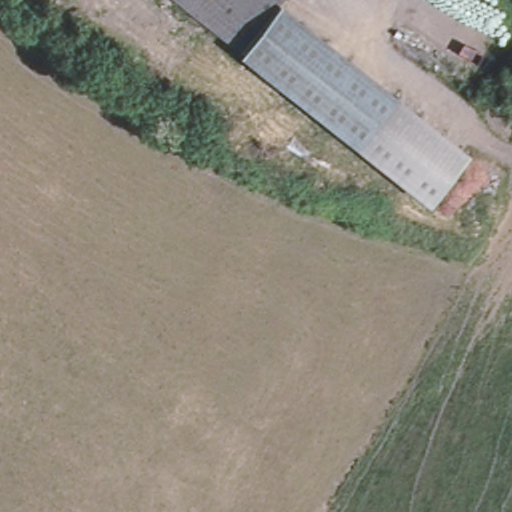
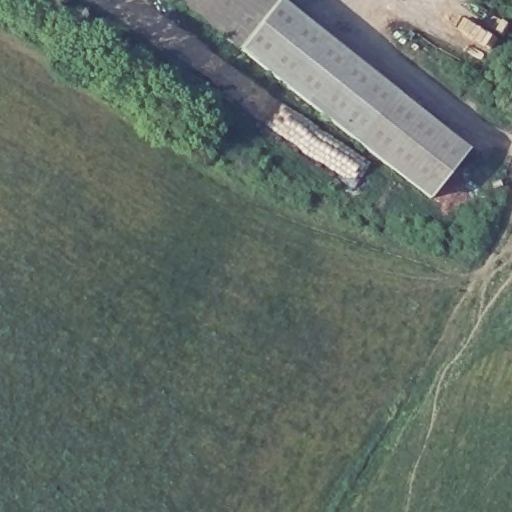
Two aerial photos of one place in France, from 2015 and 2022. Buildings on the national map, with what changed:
unchanged [(277,0),(240,44),(188,0),(277,0)]
unchanged [(282,0),(396,94),(357,141),(240,44),(277,0),(282,0)]
unchanged [(470,153),(431,203),(357,141),(396,94),(470,153)]

